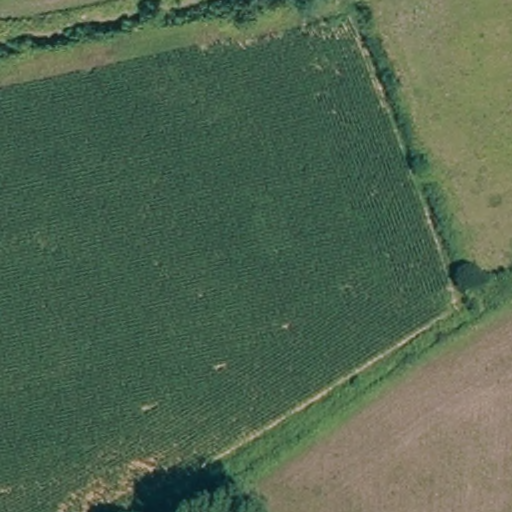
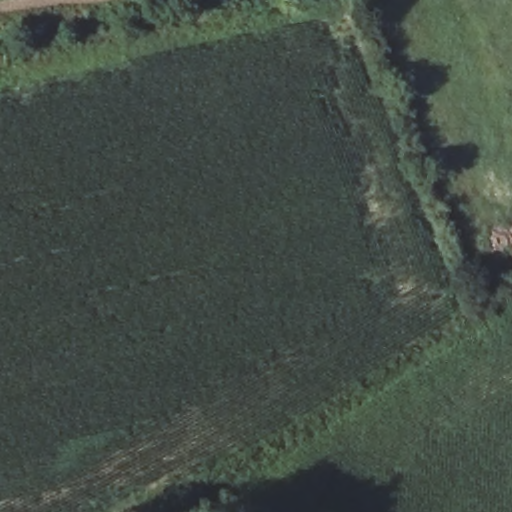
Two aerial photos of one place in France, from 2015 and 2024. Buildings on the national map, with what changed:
[]

